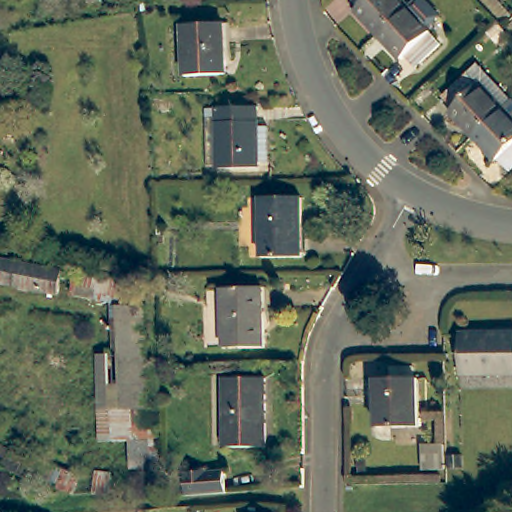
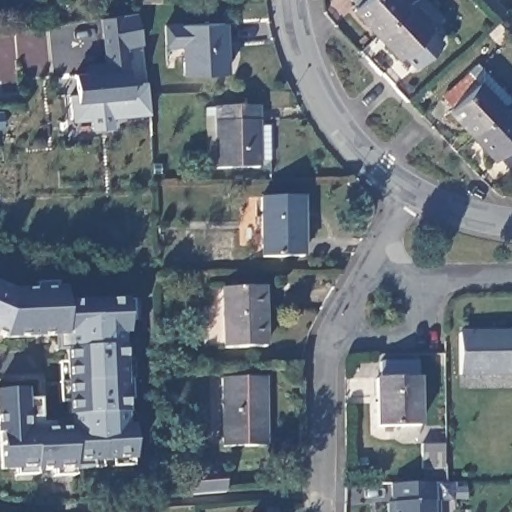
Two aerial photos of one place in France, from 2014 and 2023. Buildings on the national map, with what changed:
unchanged [(95,0),(89,1),(89,0),(95,0)]
unchanged [(138,0),(161,0),(161,3),(138,3),(138,0)]
unchanged [(357,6),(352,0),(401,0),(407,7),(377,35),(353,9),(357,6)]
unchanged [(407,7),(429,31),(427,32),(439,45),(415,68),(404,56),(400,59),(377,35),(407,7)]
new [(142,46),(127,48),(129,69),(132,81),(146,80),(150,114),(111,119),(112,126),(90,128),(89,119),(73,121),(70,95),(78,93),(75,74),(108,70),(102,18),(136,12),(142,46)]
unchanged [(183,25),(223,23),(225,74),(184,76),(183,25)]
unchanged [(444,116),(447,113),(436,101),(470,69),(505,106),(497,113),(467,141),(444,116)]
unchanged [(205,109),(216,109),(216,106),(257,106),(258,127),(267,126),(269,163),(259,163),(259,168),(216,169),(216,166),(205,166),(205,109)]
unchanged [(497,113),(512,129),(512,167),(504,175),(493,163),(490,166),(467,141),(497,113)]
unchanged [(260,197),(302,196),(302,257),(261,257),(260,197)]
demolished [(0,259),(57,270),(52,294),(0,284),(0,259)]
demolished [(112,356),(110,303),(69,294),(74,270),(139,283),(135,305),(145,304),(146,355),(112,356)]
new [(68,288),(69,303),(129,301),(130,334),(122,334),(126,429),(133,428),(134,459),(89,461),(90,469),(1,471),(0,450),(0,389),(28,389),(28,401),(39,399),(40,429),(68,428),(66,351),(54,351),(53,337),(4,340),(0,338),(0,285),(12,291),(68,288)]
unchanged [(222,287),(262,286),(264,347),(224,348),(222,287)]
unchanged [(454,375),(453,334),(512,333),(512,374),(454,375)]
unchanged [(222,377),(264,376),(266,447),(222,447),(222,377)]
unchanged [(375,427),(376,380),(418,379),(418,428),(375,427)]
demolished [(149,469),(132,469),(132,442),(148,441),(149,469)]
new [(442,443),(443,467),(421,467),(420,443),(442,443)]
demolished [(78,473),(69,495),(0,465),(0,455),(4,446),(78,473)]
unchanged [(182,472),(221,469),(223,493),(200,494),(184,494),(182,472)]
new [(393,502),(392,483),(433,482),(434,500),(438,500),(438,512),(389,512),(389,502),(393,502)]

